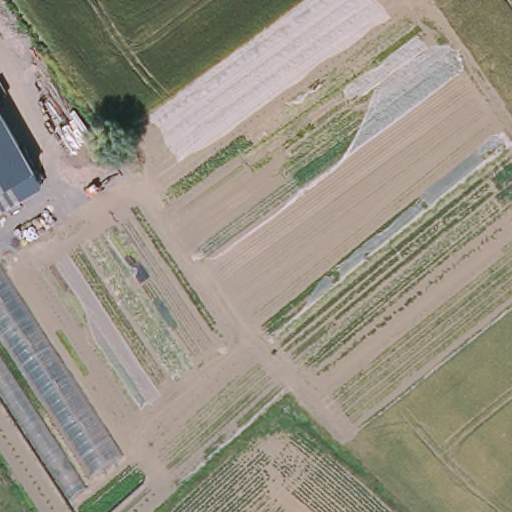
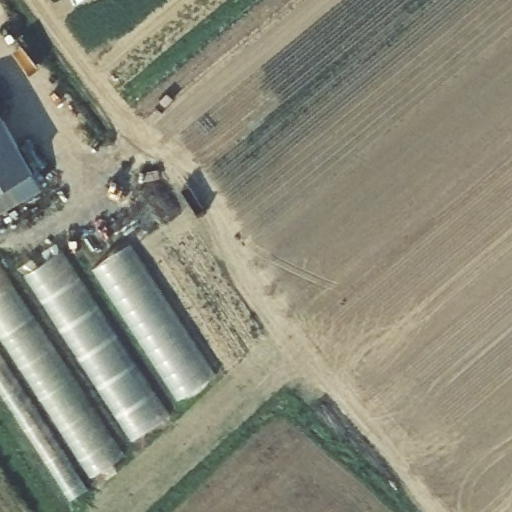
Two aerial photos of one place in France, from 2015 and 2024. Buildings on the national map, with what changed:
unchanged [(35,170),(42,187),(0,211),(0,108),(35,170)]
new [(92,268),(129,246),(214,376),(179,399),(92,268)]
new [(60,253),(165,420),(135,441),(26,276),(60,253)]
unchanged [(125,457),(83,482),(87,490),(70,500),(0,394),(0,264),(125,457)]

